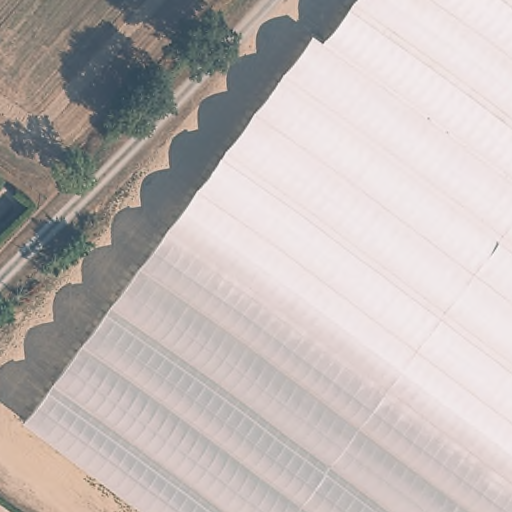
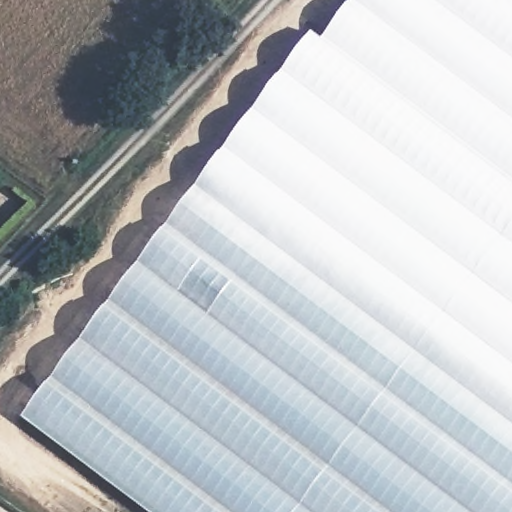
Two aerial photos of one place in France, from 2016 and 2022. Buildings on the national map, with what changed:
unchanged [(29,416),(314,34),(325,40),(355,0),(512,0),(512,512),(157,512),(29,416)]

